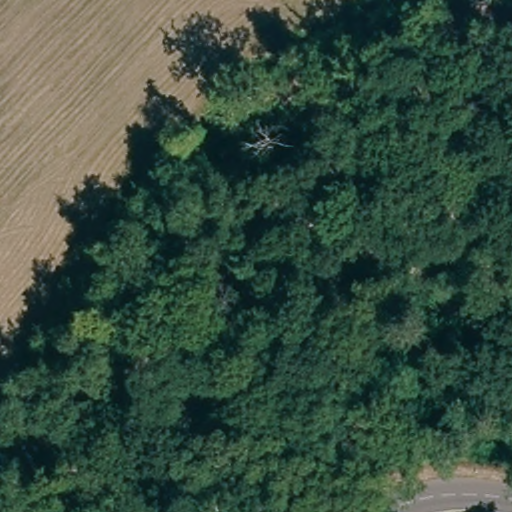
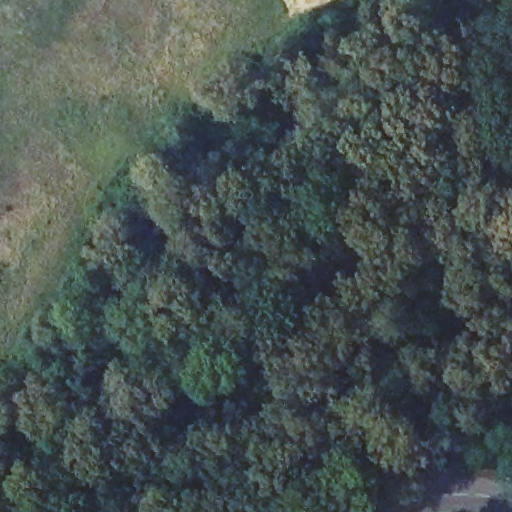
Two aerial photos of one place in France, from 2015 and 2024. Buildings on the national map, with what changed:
[]

